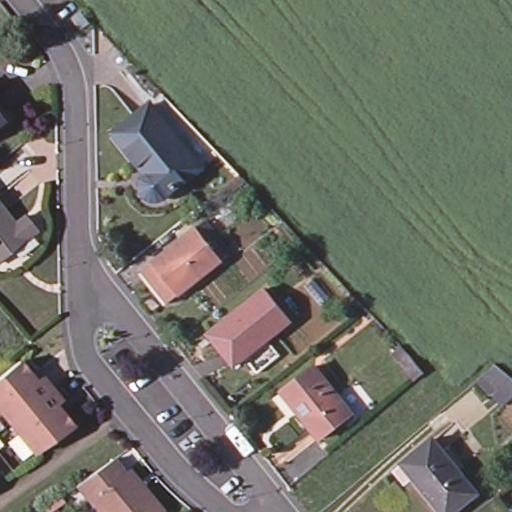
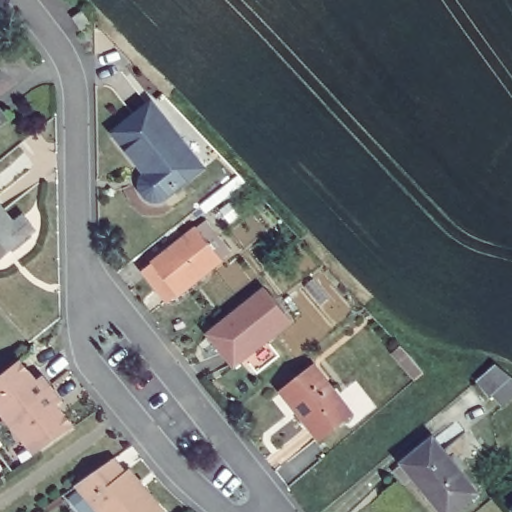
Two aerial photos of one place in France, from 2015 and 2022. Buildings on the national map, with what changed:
unchanged [(88,19),(75,31),(63,19),(76,6),(88,19)]
unchanged [(194,165),(160,194),(156,197),(151,199),(145,199),(141,197),(137,194),(134,189),(135,184),(136,179),(139,175),(109,136),(148,105),(194,165)]
unchanged [(0,125),(0,122),(1,124),(0,125)]
unchanged [(16,218),(28,232),(0,254),(0,217),(6,225),(16,218)]
unchanged [(145,268),(188,234),(201,223),(211,234),(224,253),(212,263),(168,298),(159,305),(136,275),(145,268)]
unchanged [(292,318),(236,364),(209,332),(266,286),(292,318)]
unchanged [(349,412),(314,439),(276,391),(311,363),(349,412)]
unchanged [(0,379),(19,364),(29,377),(23,382),(29,389),(42,380),(50,391),(8,424),(0,414),(0,379)]
unchanged [(8,424),(50,391),(63,406),(51,415),(58,423),(65,418),(74,429),(33,457),(8,424)]
unchanged [(479,493),(454,512),(430,512),(396,468),(434,436),(479,493)]
unchanged [(158,512),(96,512),(84,496),(75,482),(112,456),(121,469),(125,466),(158,512)]
unchanged [(509,511),(512,509),(512,512),(511,512),(509,511)]

